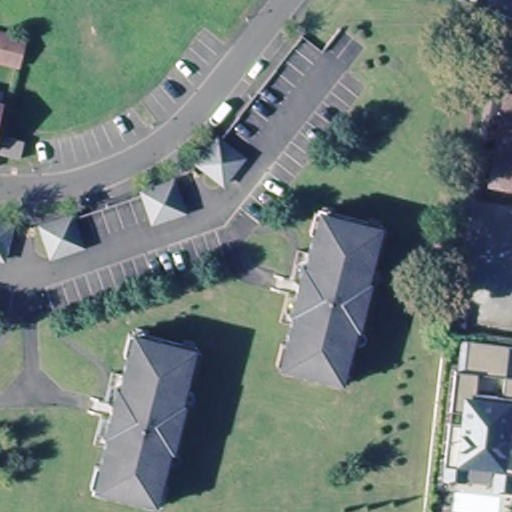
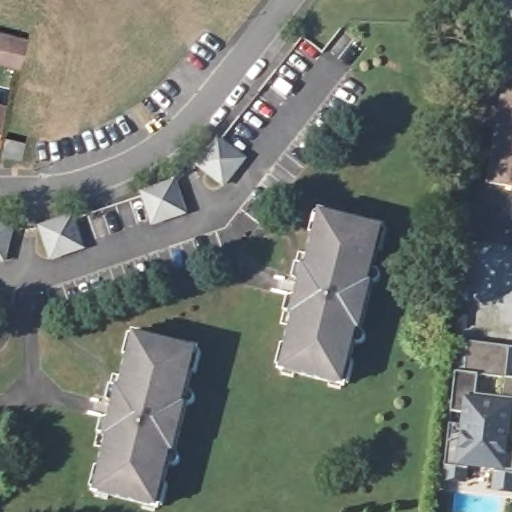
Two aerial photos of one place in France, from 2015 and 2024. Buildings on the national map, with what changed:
unchanged [(33,37),(26,66),(0,60),(0,45),(4,30),(33,37)]
unchanged [(5,101),(0,122),(0,100),(5,101)]
unchanged [(512,101),(512,192),(495,190),(497,176),(506,100),(512,101)]
unchanged [(21,139),(17,154),(2,151),(6,136),(21,139)]
unchanged [(219,141),(242,160),(224,184),(201,165),(219,141)]
unchanged [(178,185),(187,213),(159,223),(150,194),(178,185)]
unchanged [(350,388),(338,385),(288,373),(277,370),(282,346),(288,347),(296,315),(292,315),(304,266),(307,267),(315,235),(310,234),(316,210),(327,212),(377,225),(388,227),(383,252),(377,250),(373,283),(370,282),(362,331),(358,331),(351,362),(356,363),(350,388)]
unchanged [(74,218),(84,246),(55,256),(46,227),(74,218)]
unchanged [(16,229),(8,261),(0,260),(0,226),(16,229)]
unchanged [(105,493),(94,490),(100,466),(105,467),(113,435),(110,434),(121,386),(125,387),(132,355),(127,354),(133,329),(144,332),(195,344),(206,347),(200,371),(195,370),(187,402),(191,403),(179,451),(175,450),(167,482),(173,483),(167,508),(156,505),(105,493)]
unchanged [(495,494),(465,491),(462,512),(439,512),(432,511),(448,347),(510,355),(495,494)]

